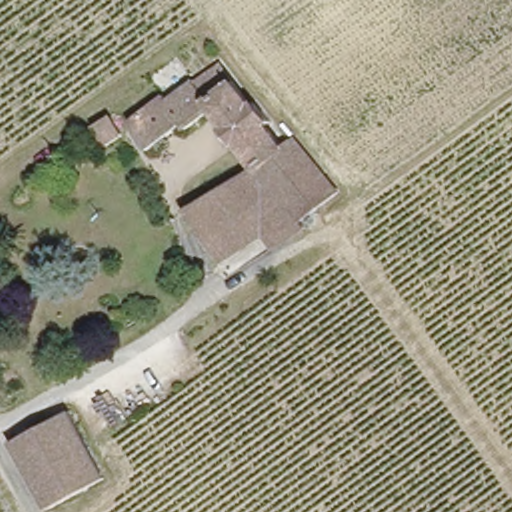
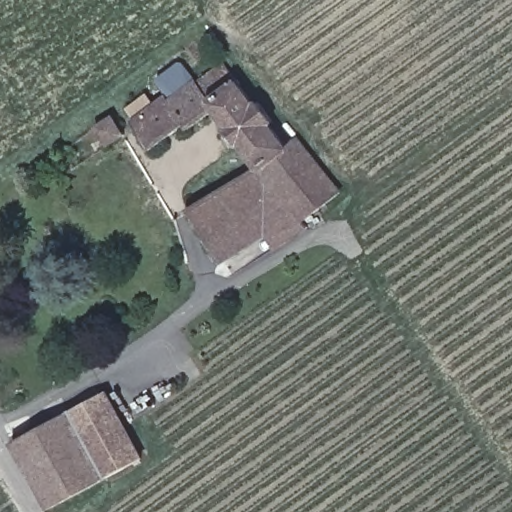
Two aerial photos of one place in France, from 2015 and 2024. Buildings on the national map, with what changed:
unchanged [(336,183),(280,221),(275,213),(219,250),(194,212),(263,166),(224,108),(196,125),(190,117),(151,141),(137,120),(151,110),(139,94),(151,85),(160,96),(200,70),(212,84),(235,68),(252,91),(262,85),(274,102),(263,110),(280,130),(291,123),(336,183)]
new [(110,390),(145,455),(96,478),(67,414),(110,390)]
unchanged [(45,502),(27,472),(11,442),(67,414),(96,478),(45,502)]

